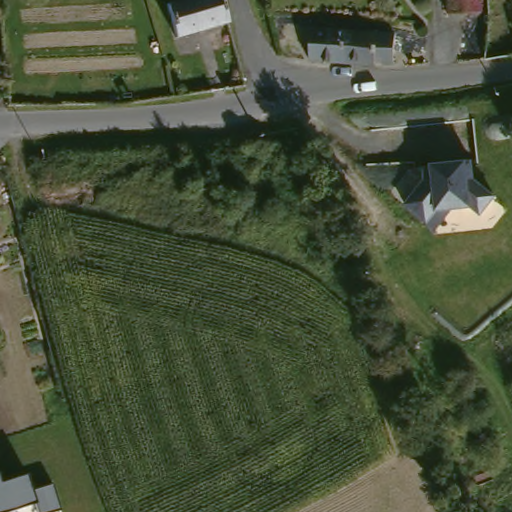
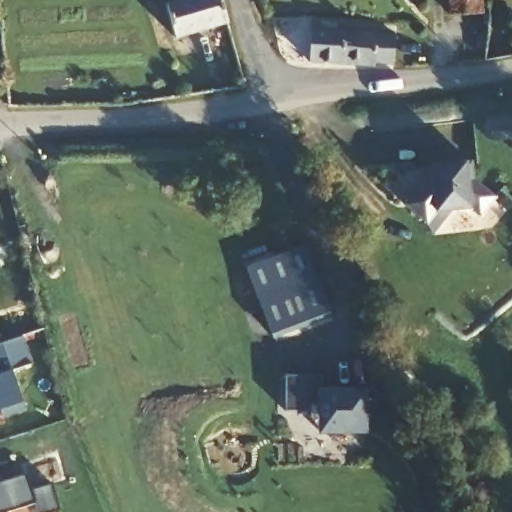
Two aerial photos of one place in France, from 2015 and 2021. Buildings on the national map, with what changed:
unchanged [(173,43),(163,8),(188,0),(221,0),(229,28),(173,43)]
unchanged [(476,10),(452,12),(451,0),(477,0),(478,10),(476,10)]
unchanged [(401,65),(388,65),(385,65),(368,64),(365,70),(307,65),(310,31),(388,38),(402,39),(401,65)]
unchanged [(420,185),(417,169),(430,168),(468,164),(469,179),(496,197),(480,217),(472,210),(435,212),(425,225),(401,208),(420,185)]
new [(317,276),(331,320),(272,339),(256,298),(317,276)]
new [(11,371),(26,411),(4,419),(1,411),(0,411),(0,344),(23,335),(32,364),(11,371)]
new [(320,387),(335,387),(366,386),(367,433),(323,434),(317,431),(311,422),(308,415),(308,407),(285,408),(283,371),(319,369),(320,387)]
unchanged [(30,491),(51,485),(59,511),(56,512),(37,512),(35,504),(7,512),(0,512),(0,483),(25,476),(30,491)]

